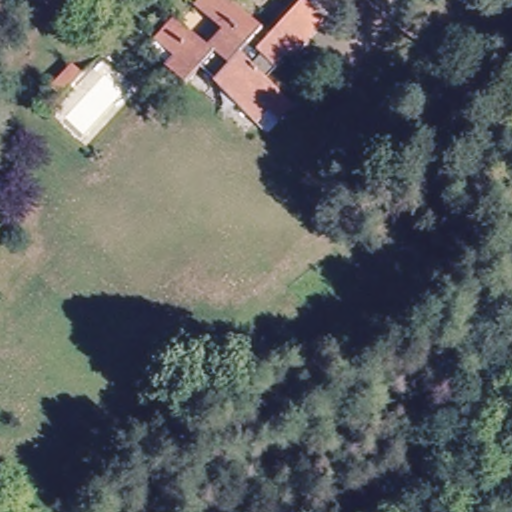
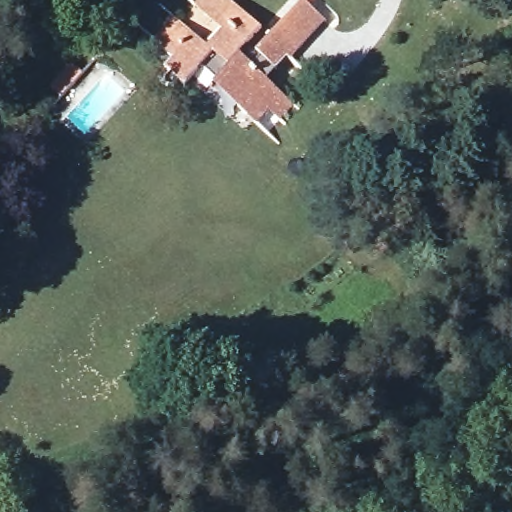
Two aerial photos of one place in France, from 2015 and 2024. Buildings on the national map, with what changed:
unchanged [(209,84),(212,79),(197,66),(180,85),(161,67),(170,58),(149,39),(170,15),(201,45),(216,29),(190,4),(193,0),(224,0),(257,30),(263,25),(269,30),(298,0),(299,0),(321,21),(287,59),(284,56),(264,77),(295,106),(280,122),(265,110),(252,124),(209,84)]
unchanged [(62,98),(51,87),(72,64),(84,75),(62,98)]

